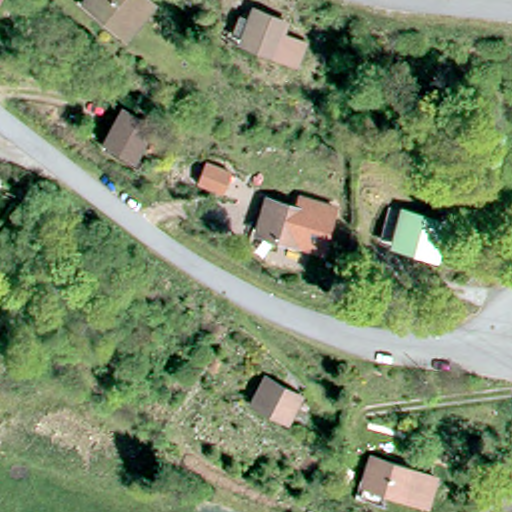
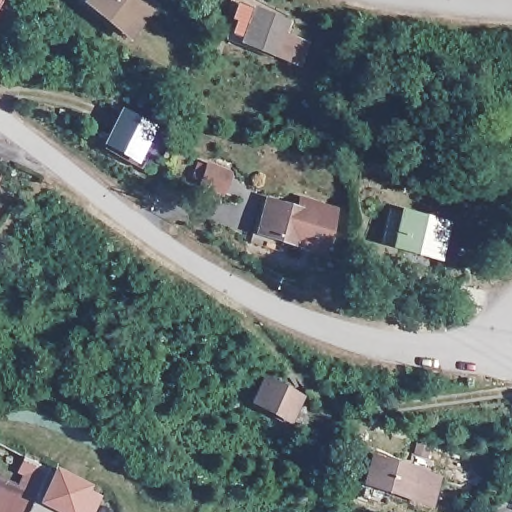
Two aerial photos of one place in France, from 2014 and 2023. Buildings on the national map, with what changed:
unchanged [(123,29),(89,0),(143,0),(145,1),(123,29)]
unchanged [(229,24),(231,20),(237,5),(248,10),(252,0),(253,0),(281,12),(277,23),(300,32),(292,50),(284,47),(282,52),(227,29),(229,24)]
unchanged [(130,158),(116,151),(119,145),(105,138),(119,111),(147,126),(130,158)]
unchanged [(315,208),(304,241),(264,228),(275,195),(315,208)]
unchanged [(446,225),(437,255),(382,239),(391,209),(446,225)]
unchanged [(304,399),(291,421),(254,400),(267,378),(304,399)]
unchanged [(446,467),(437,496),(375,476),(384,447),(446,467)]
new [(23,475),(17,472),(24,456),(53,468),(55,465),(92,484),(91,487),(105,496),(96,512),(69,512),(63,508),(35,495),(17,486),(23,475)]
new [(35,495),(63,508),(69,512),(0,512),(0,477),(35,495)]

